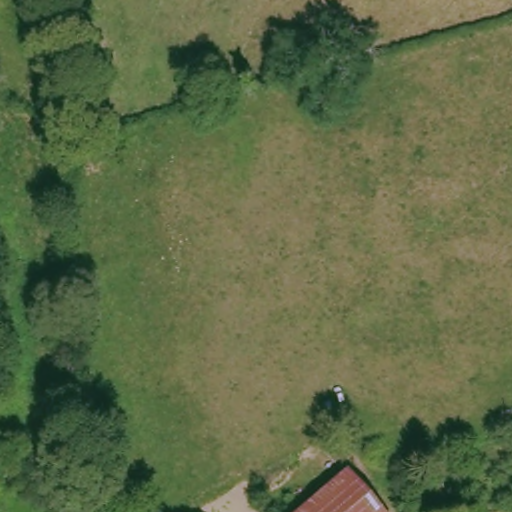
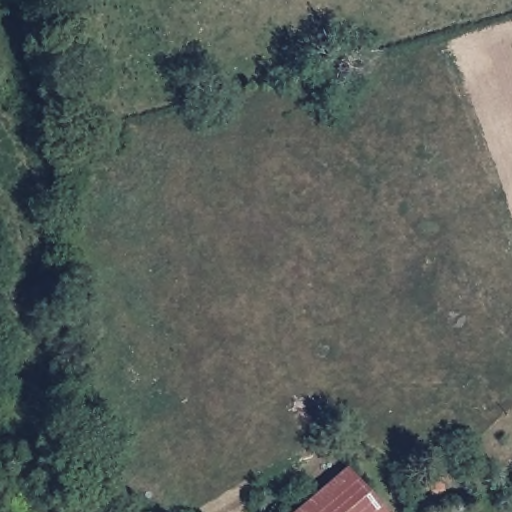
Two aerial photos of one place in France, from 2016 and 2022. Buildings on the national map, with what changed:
unchanged [(347,476),(363,494),(378,512),(308,512),(347,476)]
unchanged [(450,481),(456,509),(437,512),(431,486),(433,485),(450,481)]

